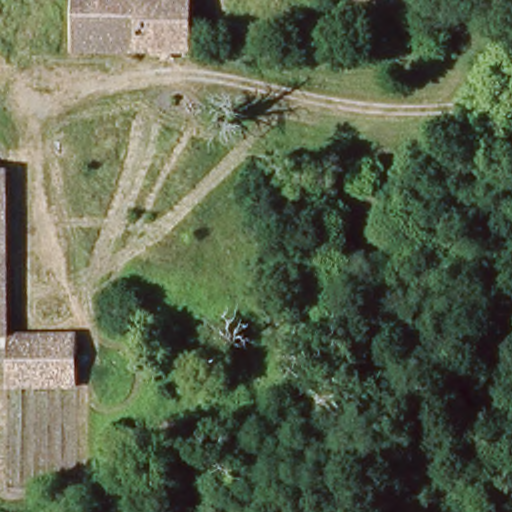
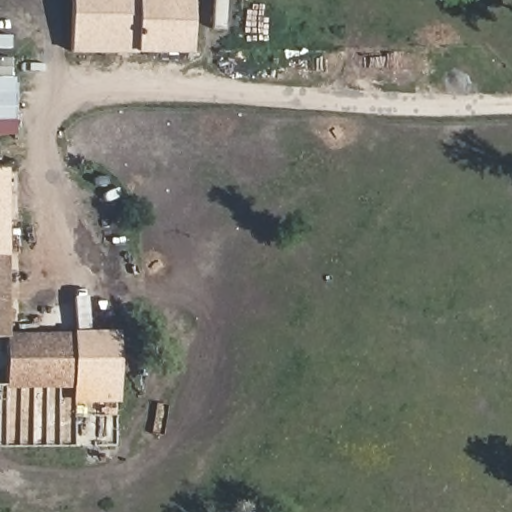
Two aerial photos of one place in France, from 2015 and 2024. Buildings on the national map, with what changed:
unchanged [(125,1),(177,0),(175,56),(69,57),(69,0),(124,0),(125,1)]
new [(17,79),(17,136),(0,136),(0,60),(11,60),(11,78),(17,79)]
unchanged [(2,251),(0,251),(0,198),(2,251)]
unchanged [(0,337),(0,251),(2,251),(6,337),(0,337)]
new [(75,331),(120,330),(121,402),(74,403),(74,388),(77,388),(78,335),(74,335),(75,331)]
unchanged [(6,337),(78,335),(77,388),(8,393),(6,337)]

